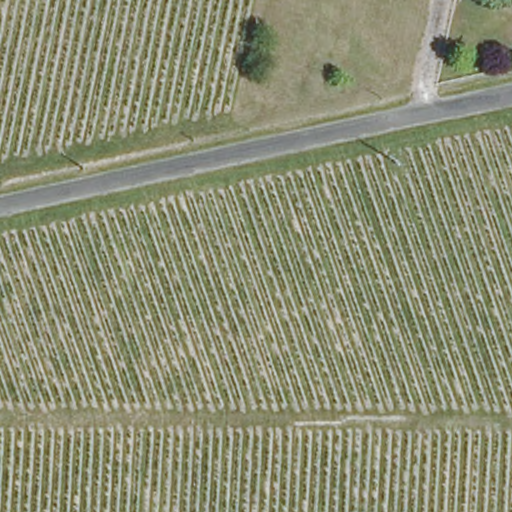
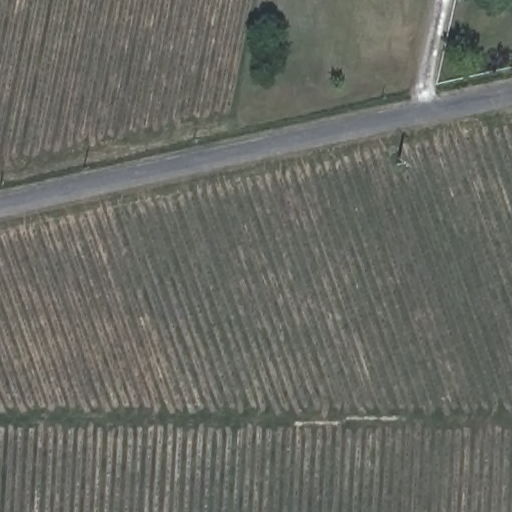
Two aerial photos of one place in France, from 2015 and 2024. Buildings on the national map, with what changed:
[]

